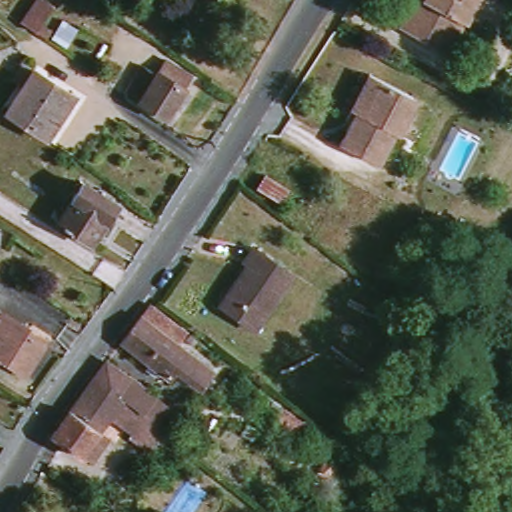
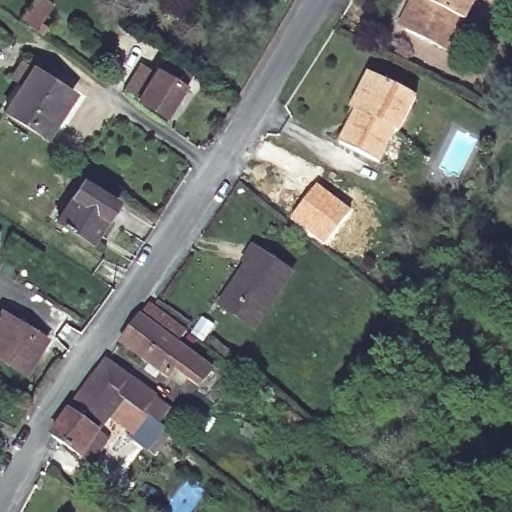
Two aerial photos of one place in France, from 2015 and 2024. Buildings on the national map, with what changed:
unchanged [(27,0),(38,0),(47,6),(39,29),(46,33),(40,44),(11,24),(27,0)]
unchanged [(405,35),(395,30),(404,14),(412,0),(422,0),(474,0),(463,23),(446,56),(438,52),(405,35)]
unchanged [(144,65),(159,74),(169,59),(195,77),(169,118),(125,95),(144,65)]
unchanged [(46,140),(43,138),(9,115),(37,71),(74,96),(46,140)]
unchanged [(349,108),(368,76),(381,83),(416,104),(396,138),(392,135),(374,165),(337,143),(356,111),(349,108)]
unchanged [(84,184),(119,207),(91,249),(57,226),(84,184)]
new [(316,184),(351,210),(324,245),(289,219),(316,184)]
unchanged [(0,259),(0,238),(4,239),(0,259)]
unchanged [(250,263),(246,259),(253,251),(292,274),(257,335),(221,313),(250,263)]
unchanged [(152,309),(183,333),(174,344),(213,374),(202,391),(175,373),(169,381),(122,347),(152,309)]
unchanged [(26,381),(0,364),(0,315),(49,345),(26,381)]
unchanged [(93,381),(102,368),(123,384),(125,381),(161,409),(150,424),(93,381)]
unchanged [(132,429),(126,435),(109,422),(79,464),(59,448),(49,440),(93,381),(150,424),(142,435),(132,429)]
unchanged [(274,410),(293,423),(289,429),(284,427),(280,430),(268,418),(274,410)]

